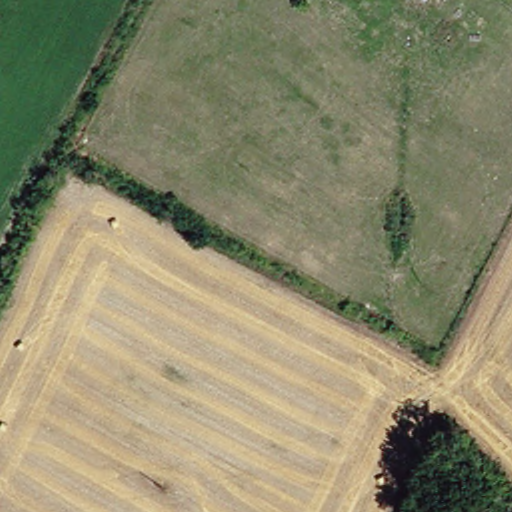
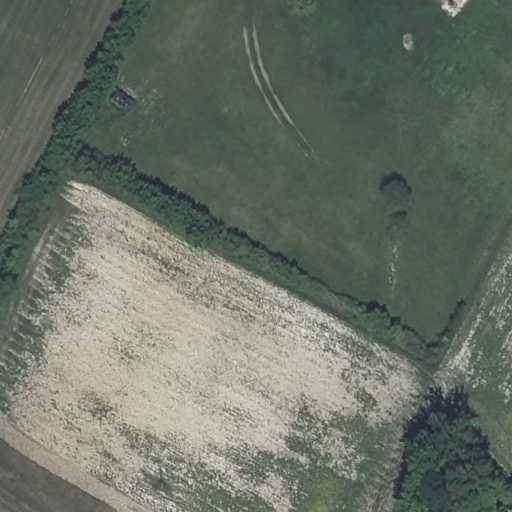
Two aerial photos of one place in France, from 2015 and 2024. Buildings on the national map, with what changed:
[]

